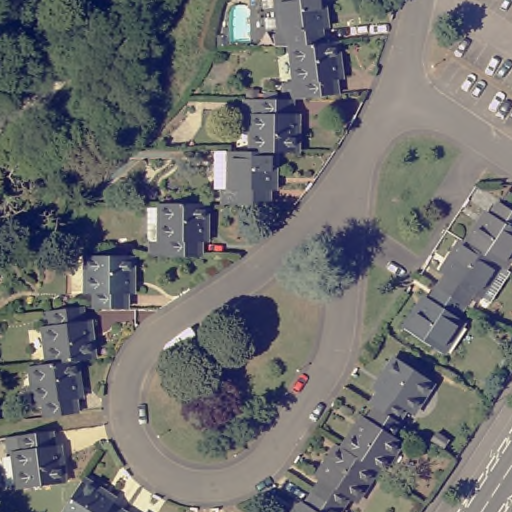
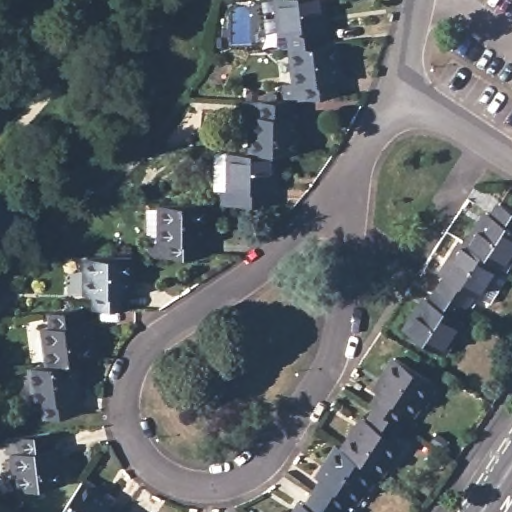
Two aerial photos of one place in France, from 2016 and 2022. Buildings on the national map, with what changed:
unchanged [(331,28),(325,29),(326,42),(297,45),(296,33),(288,33),(283,0),(328,0),(331,28)]
unchanged [(295,84),(300,84),(297,45),(326,42),(342,40),(346,79),(340,80),(341,94),(296,98),(295,84)]
unchanged [(296,113),(301,113),(301,151),(280,151),(257,151),(257,114),(249,114),(248,98),(295,98),(296,113)]
unchanged [(274,191),(273,204),(224,204),(225,190),(217,190),(218,151),(234,151),(257,151),(280,151),(279,191),(274,191)]
unchanged [(486,211),(491,214),(499,202),(512,211),(512,253),(502,268),(498,265),(465,243),(486,211)]
unchanged [(201,242),(200,256),(150,256),(150,241),(146,241),(145,209),(161,209),(161,204),(207,204),(206,242),(201,242)]
unchanged [(478,296),(470,291),(462,304),(436,287),(444,275),(440,271),(460,240),(465,243),(498,265),(478,296)]
unchanged [(131,294),(126,294),(126,308),(95,308),(96,294),(87,294),(86,255),(131,256),(131,294)]
unchanged [(454,316),(461,321),(440,352),(403,327),(424,296),(429,299),(436,287),(462,304),(454,316)]
unchanged [(88,320),(95,320),(100,358),(82,360),(55,364),(50,326),(58,325),(56,310),(79,307),(86,307),(88,320)]
unchanged [(384,393),(379,389),(400,358),(437,383),(416,413),(409,409),(401,422),(380,408),(376,405),(384,393)]
unchanged [(86,398),(80,399),(82,412),(53,416),(51,403),(42,404),(36,366),(55,364),(82,360),(86,398)]
unchanged [(398,437),(405,441),(383,474),(379,471),(346,449),(367,417),(373,420),(380,408),(401,422),(406,425),(398,437)]
unchanged [(52,444),(59,443),(64,482),(21,489),(15,450),(22,449),(20,435),(50,431),(52,444)]
unchanged [(359,503),(352,498),(343,511),(319,494),(327,481),(322,478),(342,447),(346,449),(379,471),(359,503)]
unchanged [(112,506),(121,512),(63,512),(84,480),(116,500),(112,506)]
unchanged [(299,512),(305,502),(311,506),(319,494),(343,511),(343,512),(299,512)]

